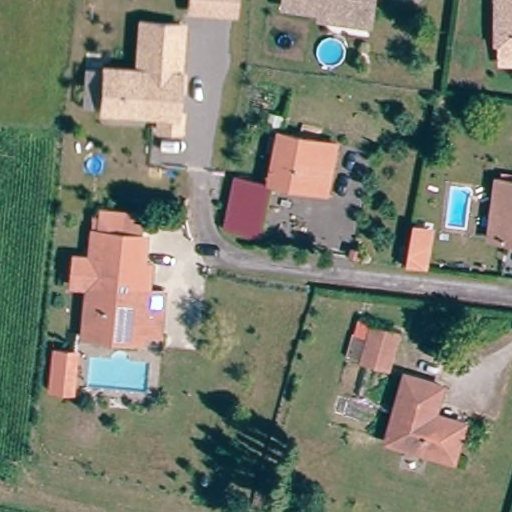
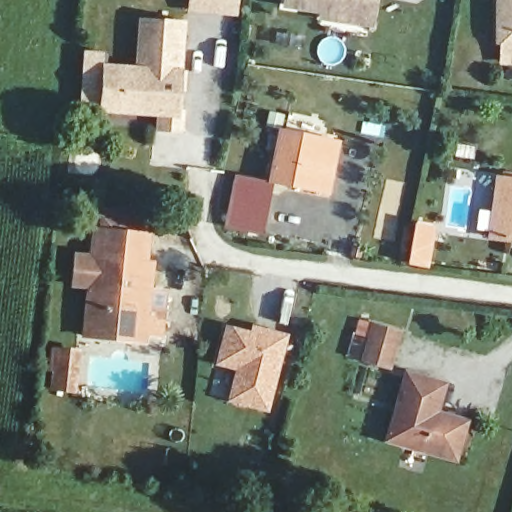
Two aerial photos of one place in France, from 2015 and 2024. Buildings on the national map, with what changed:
unchanged [(236,0),(236,13),(195,10),(195,0),(236,0)]
unchanged [(330,21),(331,16),(298,13),(299,0),(385,0),(383,16),(382,26),(330,21)]
unchanged [(502,0),(512,0),(512,65),(503,55),(502,0)]
unchanged [(102,66),(120,67),(137,68),(143,18),(184,21),(174,113),(180,113),(178,130),(156,129),(157,111),(116,108),(98,106),(102,66)]
unchanged [(337,149),(326,194),(272,182),(283,136),(337,149)]
unchanged [(500,178),(512,180),(512,243),(490,240),(500,178)]
unchanged [(258,235),(227,228),(238,180),(270,187),(258,235)]
unchanged [(101,343),(81,341),(89,234),(105,235),(106,216),(137,217),(135,237),(133,266),(145,267),(143,292),(162,293),(158,337),(142,337),(141,345),(101,343)]
unchanged [(431,247),(424,283),(407,280),(413,244),(431,247)]
unchanged [(386,369),(361,361),(375,320),(399,328),(386,369)]
new [(268,341),(270,332),(287,336),(268,410),(231,401),(240,369),(219,363),(228,330),(268,341)]
unchanged [(69,377),(64,416),(46,414),(50,375),(69,377)]
unchanged [(458,465),(432,458),(392,446),(414,377),(448,388),(443,405),(438,420),(469,429),(458,465)]

